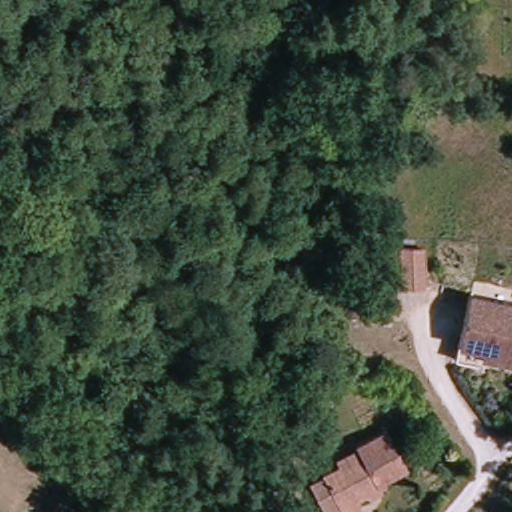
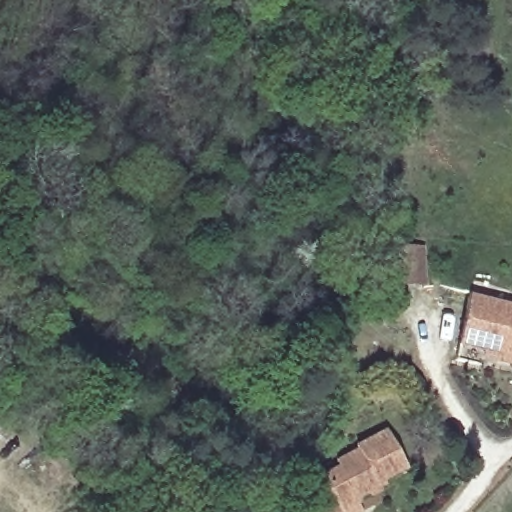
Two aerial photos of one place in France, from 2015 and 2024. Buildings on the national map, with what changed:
unchanged [(431,289),(431,291),(411,291),(410,251),(430,251),(431,289)]
unchanged [(472,363),(456,359),(460,344),(465,323),(466,321),(472,296),(505,304),(512,306),(512,364),(497,361),(484,358),(482,365),(472,363)]
unchanged [(316,479),(329,472),(328,470),(344,461),(341,455),(362,443),(360,440),(390,423),(411,460),(389,473),(391,476),(385,479),(375,485),(362,492),(369,504),(355,512),(352,512),(350,509),(344,512),(335,512),(323,492),(316,479)]

